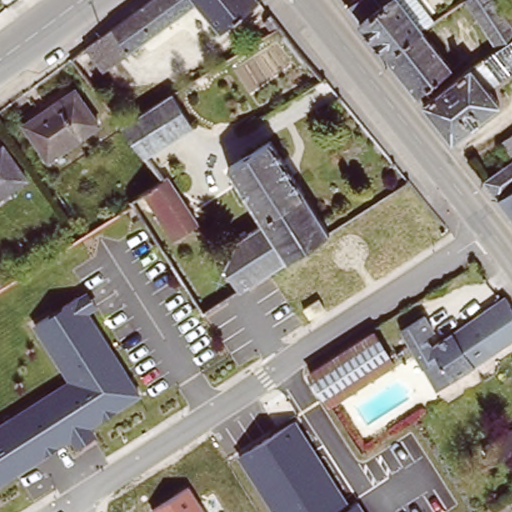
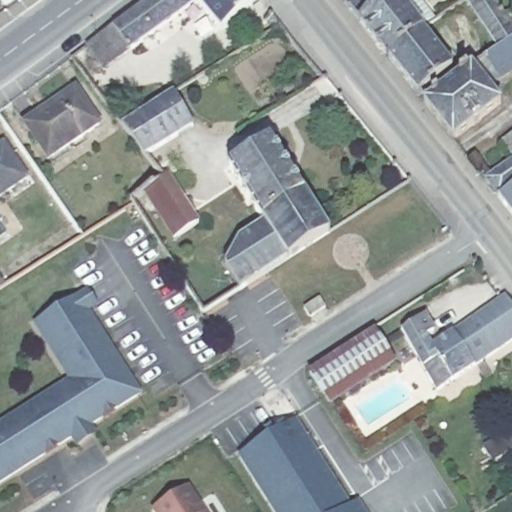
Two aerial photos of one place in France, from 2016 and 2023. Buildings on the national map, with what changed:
unchanged [(85,53),(112,34),(157,0),(255,0),(259,5),(221,36),(197,7),(196,7),(147,44),(129,57),(103,77),(85,53)]
unchanged [(402,0),(415,0),(434,26),(422,35),(387,62),(361,28),(370,20),(357,5),(365,0),(394,0),(395,1),(396,0),(398,4),(402,0)]
unchanged [(512,31),(512,44),(497,55),(465,5),(471,0),(491,0),(512,31)]
unchanged [(280,26),(270,32),(262,22),(271,15),(280,25),(280,26)]
unchanged [(452,72),(417,100),(387,62),(422,35),(452,72)]
unchanged [(500,109),(452,146),(422,108),(471,71),(497,55),(512,44),(512,77),(488,94),(500,109)]
unchanged [(42,160),(19,125),(69,90),(94,125),(42,160)]
unchanged [(142,160),(121,131),(171,100),(191,131),(142,160)]
unchanged [(502,146),(512,139),(512,162),(502,146)]
unchanged [(324,234),(235,290),(220,266),(233,239),(258,223),(222,167),(265,140),(299,194),(324,234)]
unchanged [(26,179),(0,197),(0,148),(3,146),(26,179)]
unchanged [(499,202),(484,185),(512,165),(512,194),(499,202)]
unchanged [(174,240),(142,192),(167,176),(197,225),(174,240)]
unchanged [(499,202),(512,194),(512,220),(499,202)]
unchanged [(31,326),(89,291),(97,306),(90,312),(142,394),(95,429),(98,437),(77,449),(71,441),(0,486),(0,421),(64,380),(31,326)]
unchanged [(424,320),(434,336),(426,341),(432,352),(505,301),(512,313),(512,345),(486,363),(489,367),(484,371),(481,366),(436,395),(400,335),(424,320)]
unchanged [(397,368),(334,409),(314,377),(377,337),(397,368)]
unchanged [(350,505),(359,500),(366,512),(274,512),(239,455),(296,420),(350,505)]
unchanged [(487,470),(477,452),(512,431),(512,455),(487,470)]
unchanged [(190,485),(206,512),(153,512),(152,511),(190,485)]
unchanged [(510,511),(506,503),(512,499),(512,510),(510,511)]

